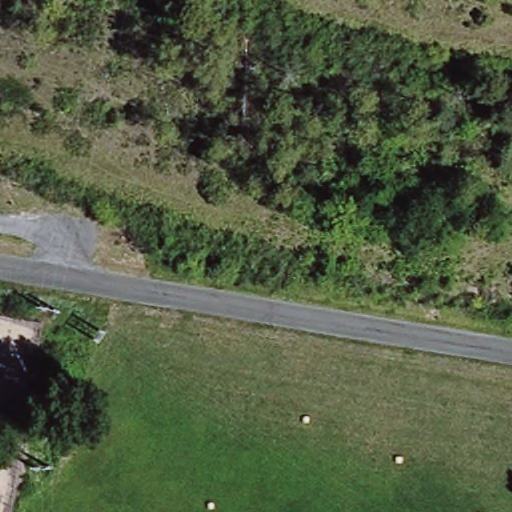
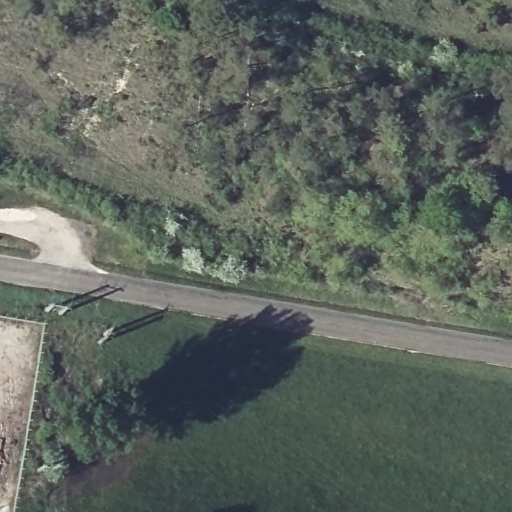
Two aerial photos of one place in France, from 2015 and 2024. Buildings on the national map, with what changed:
[]

